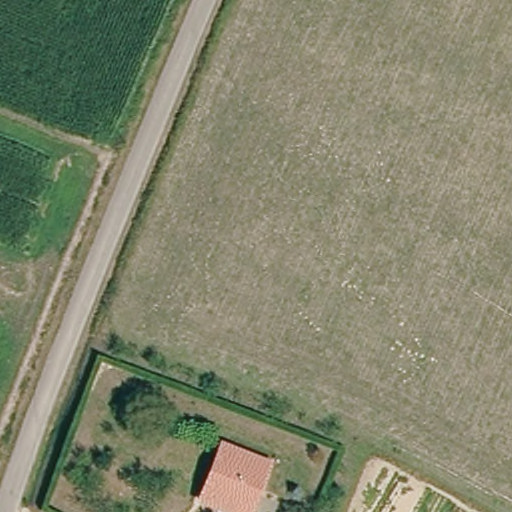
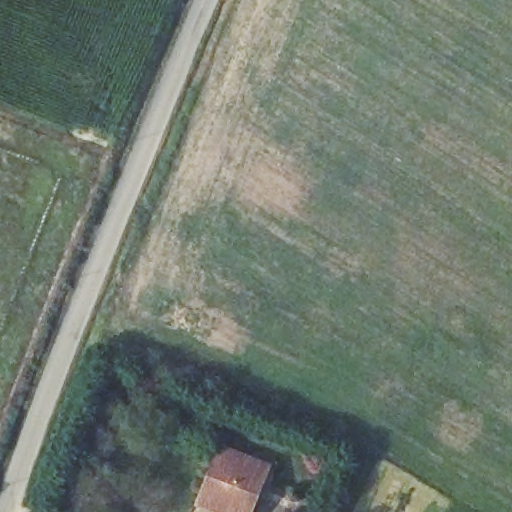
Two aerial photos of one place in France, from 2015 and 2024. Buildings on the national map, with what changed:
unchanged [(224,448),(261,464),(269,467),(255,500),(249,512),(225,512),(202,501),(224,448)]

